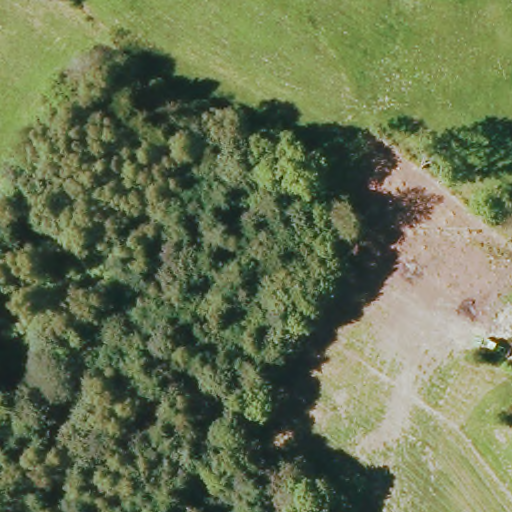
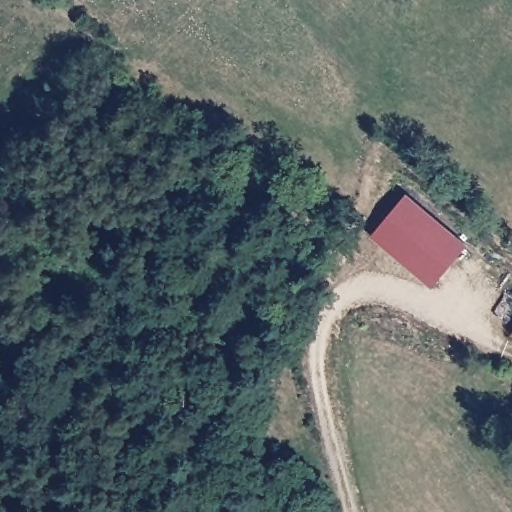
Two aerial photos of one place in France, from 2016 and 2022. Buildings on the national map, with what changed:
new [(431,281),(367,227),(403,185),(465,240),(431,281)]

